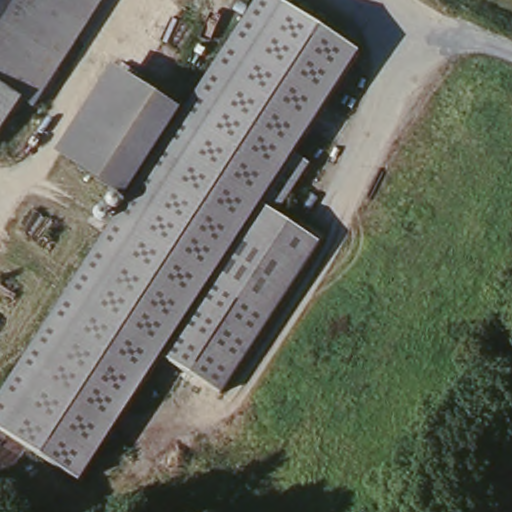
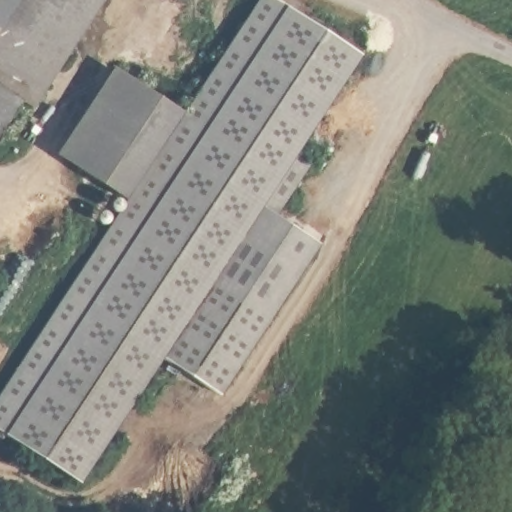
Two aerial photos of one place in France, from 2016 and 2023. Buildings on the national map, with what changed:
unchanged [(0,16),(0,0),(11,0),(0,16)]
unchanged [(72,45),(30,106),(21,102),(0,132),(0,16),(11,0),(101,0),(72,45)]
unchanged [(364,56),(299,155),(314,166),(282,217),(324,243),(225,395),(165,357),(83,483),(0,429),(0,403),(101,247),(213,74),(261,0),(276,0),(364,56)]
unchanged [(181,111),(124,197),(58,152),(115,67),(181,111)]

